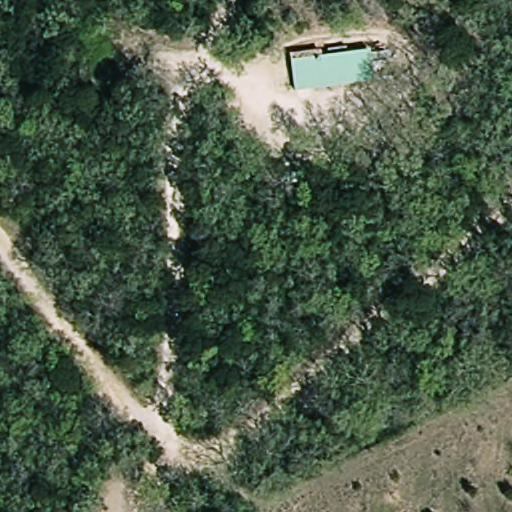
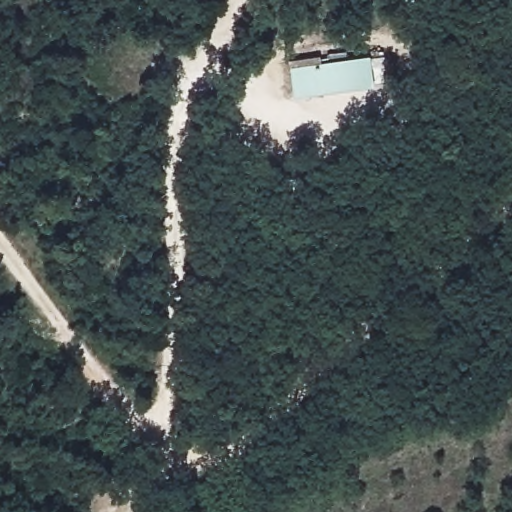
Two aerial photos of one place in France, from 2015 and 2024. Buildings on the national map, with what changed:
unchanged [(323,56),(325,65),(369,57),(374,85),(301,97),(294,61),(323,56)]

